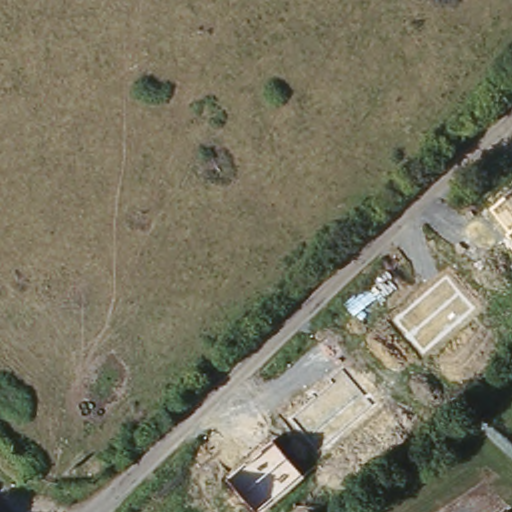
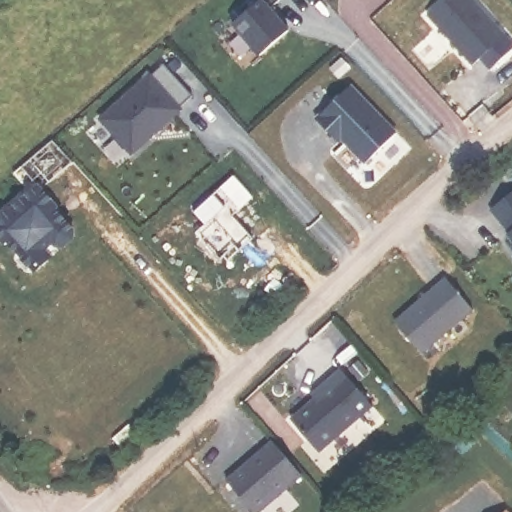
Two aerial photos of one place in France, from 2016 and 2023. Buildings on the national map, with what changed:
new [(294,25),(264,50),(237,19),(260,0),(275,0),(294,25)]
new [(469,59),(427,14),(442,0),(478,0),(512,36),(512,49),(494,65),(479,50),(469,59)]
new [(98,114),(147,65),(154,72),(165,62),(193,91),(131,150),(98,114)]
new [(398,132),(368,165),(319,114),(351,85),(398,132)]
new [(232,177),(252,198),(232,215),(253,237),(239,250),(235,245),(221,259),(195,234),(204,225),(194,215),(232,177)]
new [(32,261),(0,227),(0,219),(44,180),(79,222),(32,261)]
unchanged [(511,233),(492,209),(512,195),(512,242),(507,235),(511,233)]
unchanged [(447,275),(477,309),(425,355),(395,320),(447,275)]
unchanged [(346,372),(378,406),(322,457),(288,419),(346,372)]
unchanged [(304,479),(266,512),(253,512),(226,480),(273,440),(304,479)]
unchanged [(509,512),(500,512),(505,508),(509,512)]

